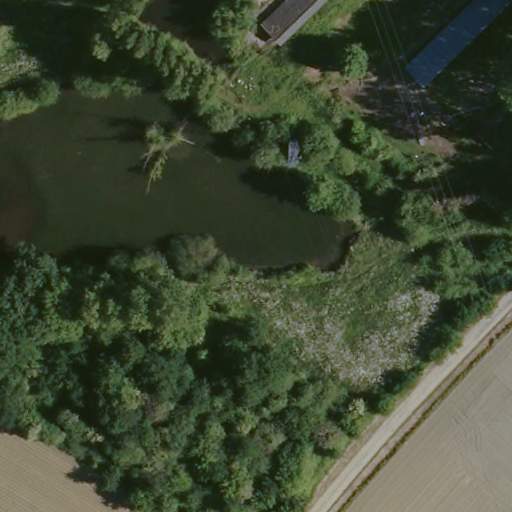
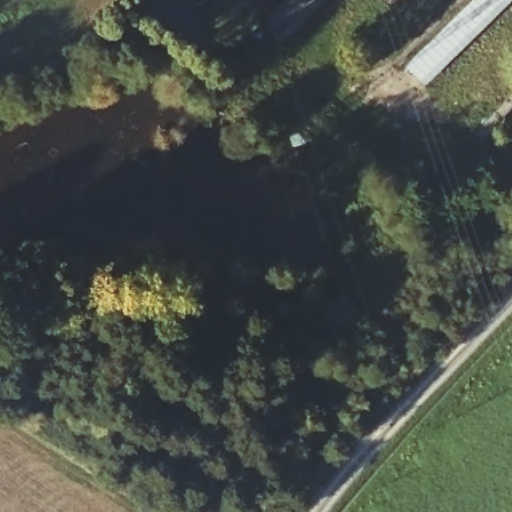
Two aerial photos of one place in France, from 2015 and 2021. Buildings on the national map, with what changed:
unchanged [(222,19),(212,8),(221,0),(224,0),(233,9),(222,19)]
unchanged [(292,0),(334,0),(282,50),(262,30),(292,0)]
unchanged [(512,7),(427,92),(403,67),(473,0),(512,0),(512,7)]
unchanged [(478,82),(492,68),(502,80),(490,93),(478,82)]
unchanged [(512,87),(512,107),(481,140),(471,130),(512,87)]

